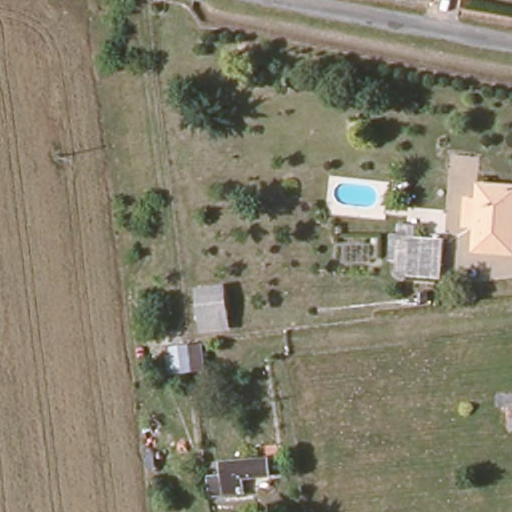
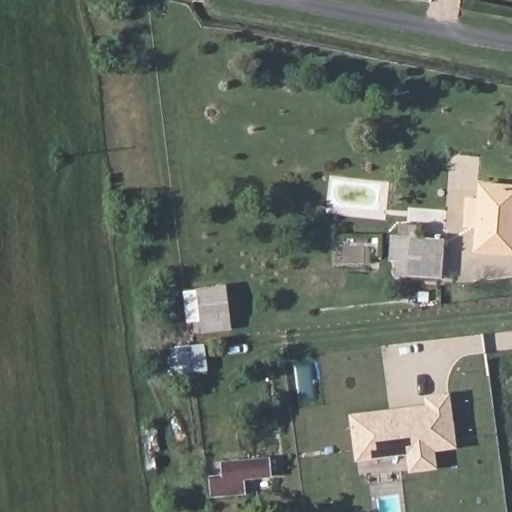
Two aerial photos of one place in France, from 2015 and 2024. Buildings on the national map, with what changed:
unchanged [(512,252),(481,249),(484,215),(474,214),(474,196),(486,196),(488,184),(512,184),(512,252)]
unchanged [(438,236),(433,276),(400,273),(400,268),(402,234),(438,236)]
unchanged [(197,291),(224,288),(229,318),(230,329),(202,332),(201,320),(197,291)]
unchanged [(204,341),(207,368),(172,372),(169,345),(204,341)]
new [(436,450),(437,468),(407,472),(406,455),(356,460),(350,413),(426,404),(425,395),(450,392),(457,448),(436,450)]
unchanged [(512,429),(509,430),(507,405),(497,406),(497,395),(512,393),(512,429)]
unchanged [(267,473),(226,479),(224,465),(267,459),(267,473)]

